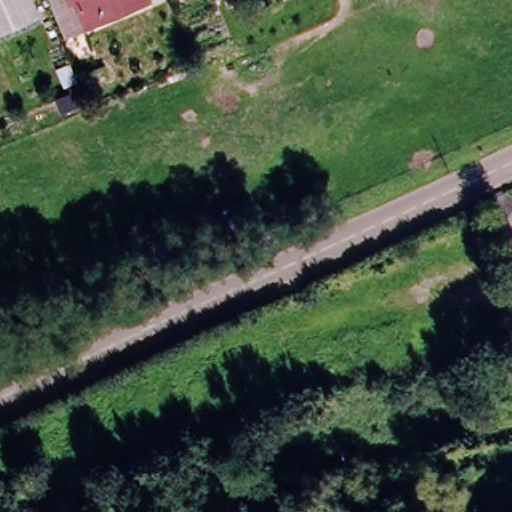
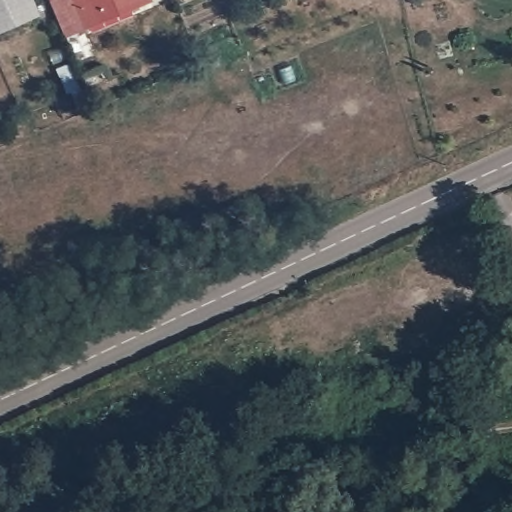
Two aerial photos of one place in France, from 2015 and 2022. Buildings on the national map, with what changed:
unchanged [(0,34),(0,0),(30,0),(38,17),(0,34)]
unchanged [(133,11),(88,30),(67,40),(51,3),(58,0),(149,0),(132,8),(133,11)]

